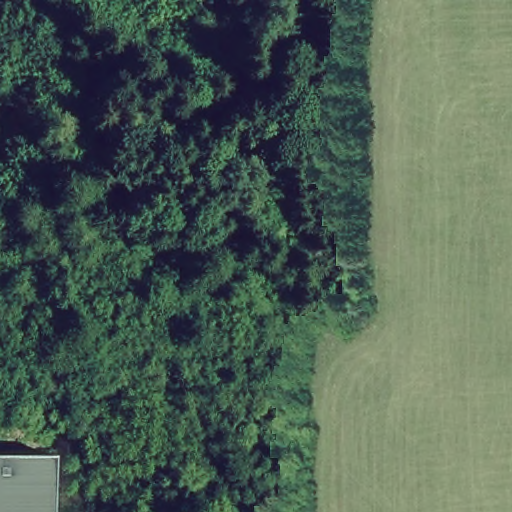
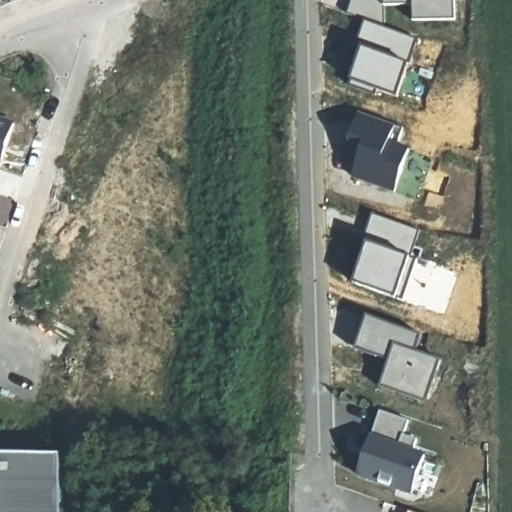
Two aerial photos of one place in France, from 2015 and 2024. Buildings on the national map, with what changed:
new [(412,20),(412,6),(387,6),(386,29),(417,41),(397,101),(347,82),(365,20),(349,12),(353,0),(455,0),(455,19),(412,20)]
new [(397,125),(390,142),(410,150),(395,192),(355,177),(359,158),(351,142),(357,112),(397,125)]
new [(2,168),(0,167),(0,117),(17,121),(2,168)]
new [(5,227),(0,225),(0,196),(14,200),(5,227)]
new [(418,232),(410,260),(417,260),(405,300),(357,283),(367,244),(365,241),(373,214),(418,232)]
new [(422,338),(417,353),(440,360),(428,400),(384,385),(389,360),(358,348),(368,316),(422,338)]
new [(412,495),(355,476),(379,410),(409,418),(405,435),(417,438),(415,449),(424,453),(412,495)]
unchanged [(61,512),(0,512),(0,459),(62,460),(61,512)]

